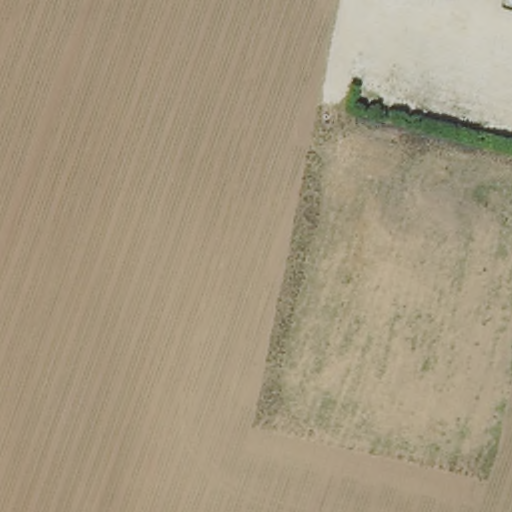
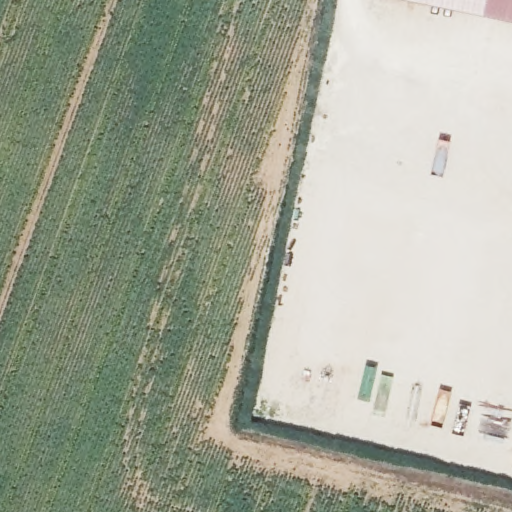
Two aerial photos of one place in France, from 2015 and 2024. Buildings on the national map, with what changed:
new [(512,0),(512,23),(395,0),(512,0)]

